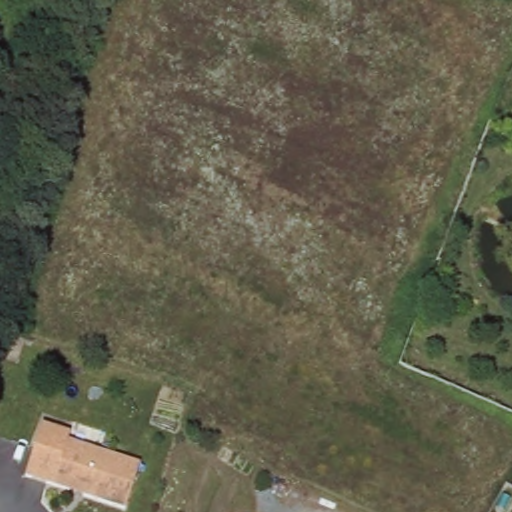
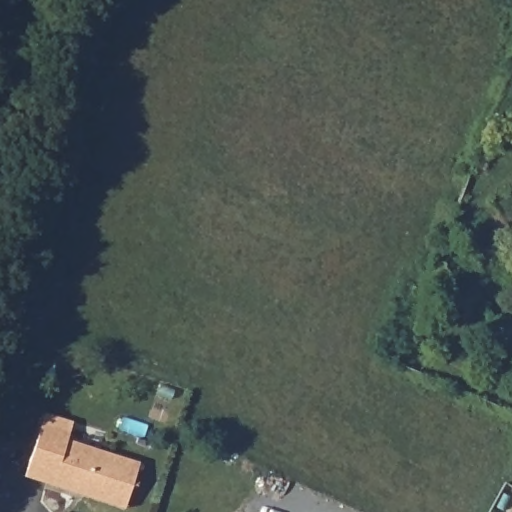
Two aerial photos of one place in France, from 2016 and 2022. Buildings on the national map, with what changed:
unchanged [(41,418),(69,427),(68,434),(140,457),(126,502),(25,471),(41,418)]

